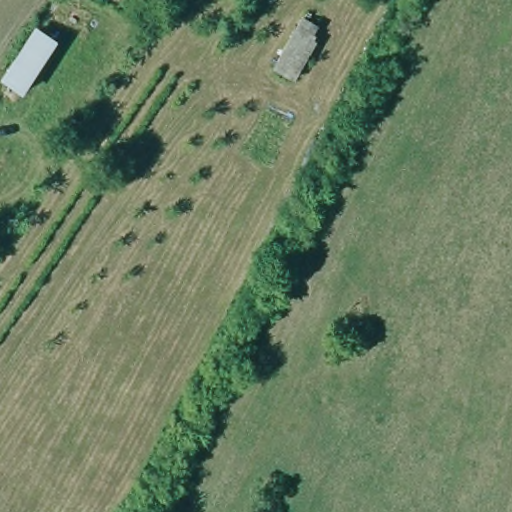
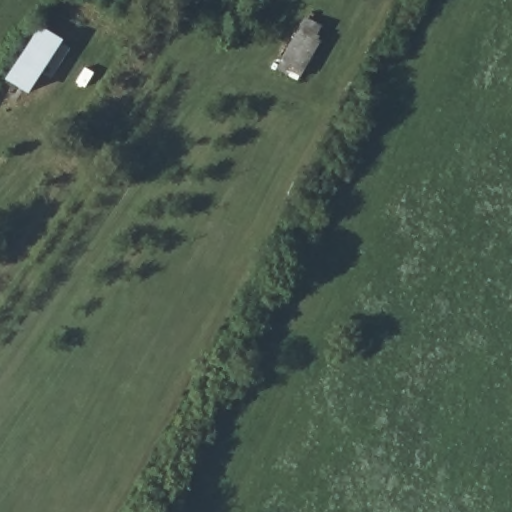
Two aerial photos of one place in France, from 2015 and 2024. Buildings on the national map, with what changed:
unchanged [(295,87),(273,74),(305,18),(326,30),(295,87)]
unchanged [(29,96),(6,83),(39,30),(62,43),(29,96)]

